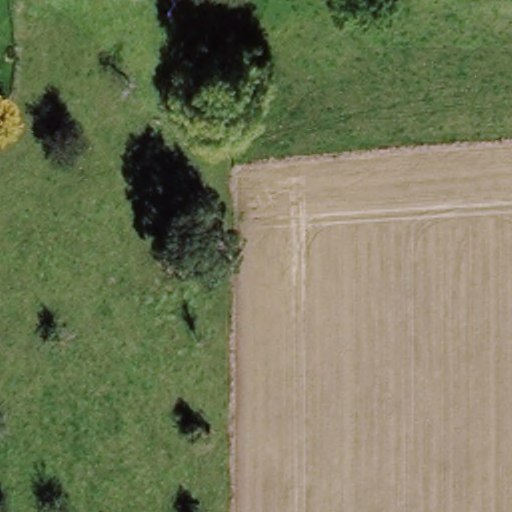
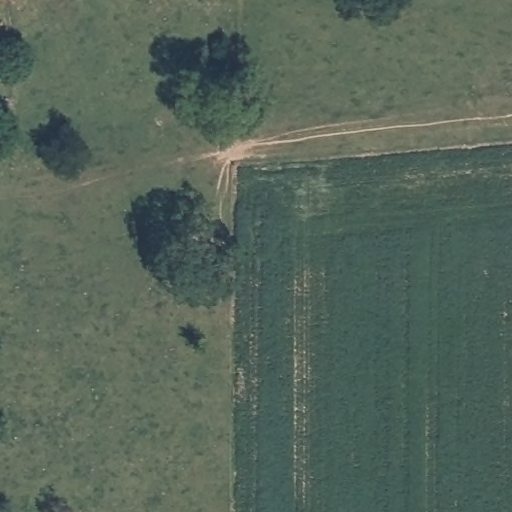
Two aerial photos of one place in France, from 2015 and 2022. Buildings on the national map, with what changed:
[]

